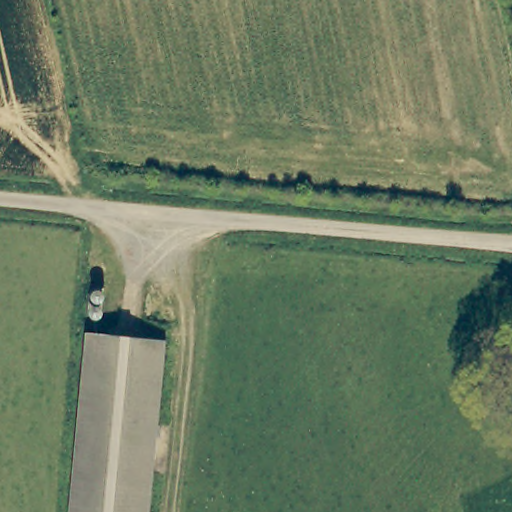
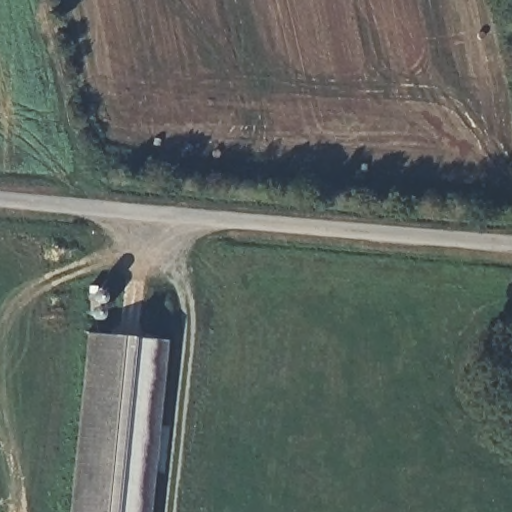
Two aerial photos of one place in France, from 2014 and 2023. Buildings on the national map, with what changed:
unchanged [(73,512),(90,335),(168,343),(151,512),(73,512)]

